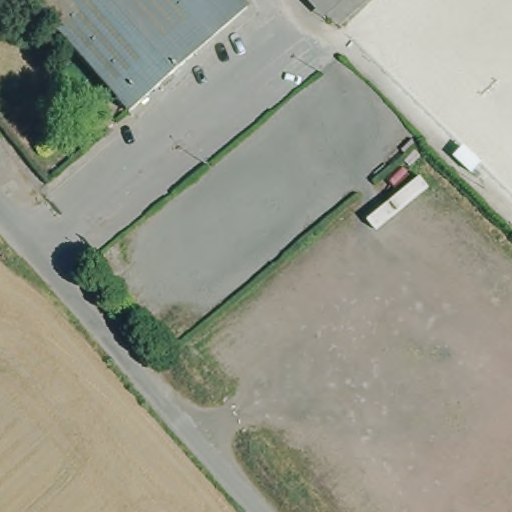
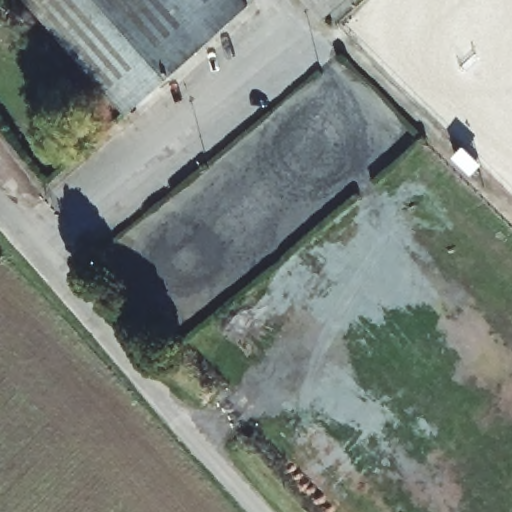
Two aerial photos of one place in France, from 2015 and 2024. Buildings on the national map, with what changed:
unchanged [(242,0),(250,9),(124,115),(26,0),(242,0)]
unchanged [(301,0),(314,0),(307,6),(301,0)]

